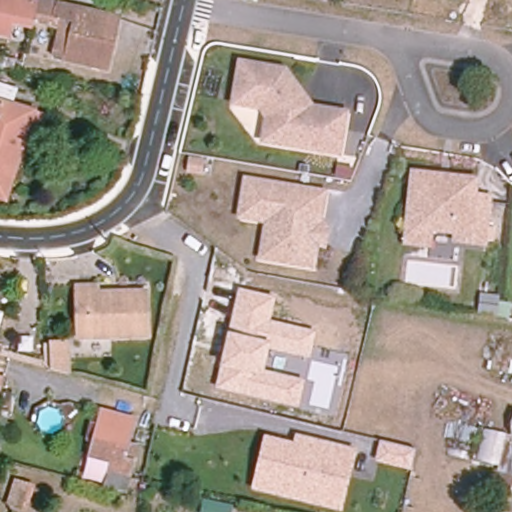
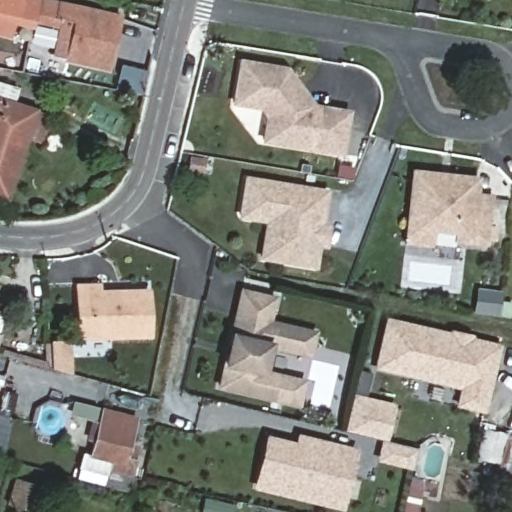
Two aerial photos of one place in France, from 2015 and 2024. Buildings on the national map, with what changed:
unchanged [(42,0),(40,7),(63,13),(60,29),(34,21),(33,29),(12,25),(10,38),(0,37),(0,0),(42,0)]
unchanged [(66,0),(119,12),(107,64),(55,52),(60,29),(63,13),(40,7),(42,0),(66,0)]
unchanged [(312,108),(346,114),(339,155),(284,145),(287,132),(266,128),(268,117),(262,108),(234,104),(242,63),(286,71),(300,90),(312,108)]
unchanged [(35,106),(7,194),(0,192),(0,80),(16,85),(11,99),(35,106)]
unchanged [(327,189),(323,221),(329,222),(326,247),(319,246),(315,267),(259,258),(264,222),(239,218),(245,177),(327,189)]
unchanged [(419,249),(420,241),(421,233),(406,231),(412,184),(428,186),(440,188),(439,196),(465,199),(467,184),(490,187),(483,249),(482,256),(419,249)]
unchanged [(147,292),(148,335),(80,337),(79,286),(98,286),(98,292),(147,292)]
unchanged [(270,320),(315,331),(310,358),(268,350),(264,370),(305,379),(298,408),(216,388),(220,367),(228,333),(238,289),(275,297),(270,320)]
new [(484,413),(454,405),(457,388),(374,367),(386,316),(448,331),(449,329),(474,335),(474,337),(501,344),(484,413)]
unchanged [(70,374),(52,369),(51,344),(69,343),(70,374)]
new [(354,395),(392,405),(384,439),(345,430),(354,395)]
unchanged [(129,442),(138,444),(133,463),(124,460),(123,463),(93,455),(104,411),(134,419),(129,442)]
unchanged [(485,430),(500,433),(510,435),(512,436),(512,472),(492,467),(493,462),(477,459),(485,430)]
unchanged [(512,436),(510,435),(512,430),(512,436)]
unchanged [(357,448),(342,511),(251,490),(265,435),(294,442),(295,433),(357,448)]
new [(381,444),(414,452),(410,470),(377,462),(381,444)]
unchanged [(512,482),(490,476),(492,467),(512,472),(512,482)]
unchanged [(130,477),(126,494),(108,488),(112,472),(130,477)]
unchanged [(10,504),(17,481),(33,486),(26,509),(10,504)]
unchanged [(234,505),(233,512),(203,512),(206,499),(234,505)]

